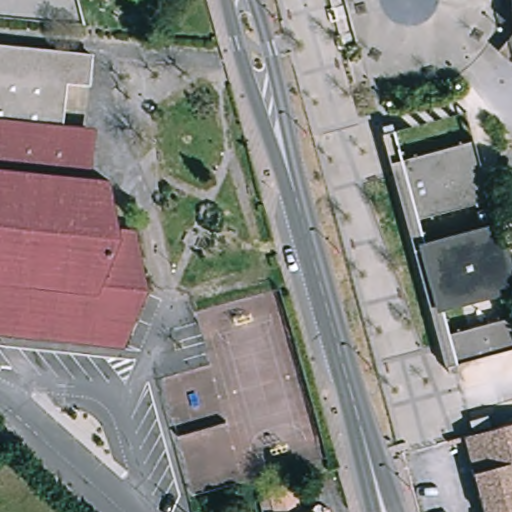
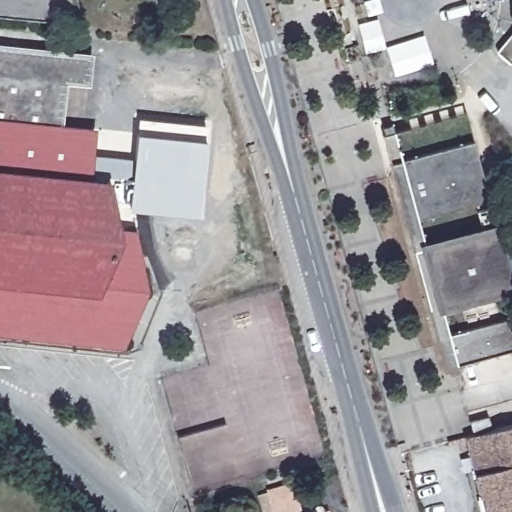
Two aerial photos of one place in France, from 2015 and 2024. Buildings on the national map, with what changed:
unchanged [(509,66),(498,53),(512,37),(512,66),(509,66)]
unchanged [(116,247),(132,249),(143,304),(119,352),(0,333),(0,47),(81,54),(88,55),(86,83),(79,82),(63,80),(58,134),(86,137),(82,187),(105,191),(116,247)]
new [(139,118),(204,125),(203,139),(206,139),(199,215),(130,209),(137,131),(139,118)]
unchanged [(377,120),(387,118),(390,129),(399,154),(470,134),(488,197),(416,216),(424,243),(496,224),(512,284),(512,290),(443,309),(449,335),(512,318),(512,350),(456,366),(444,369),(381,133),(377,120)]
unchanged [(501,422),(489,424),(487,416),(499,413),(501,422)]
unchanged [(484,425),(467,429),(464,419),(482,414),(484,425)]
unchanged [(476,483),(463,436),(512,423),(512,512),(483,512),(476,483)]
unchanged [(284,487),(292,484),(300,512),(273,512),(273,511),(269,512),(263,512),(260,500),(258,494),(284,487)]
unchanged [(328,510),(328,512),(320,512),(328,510)]

